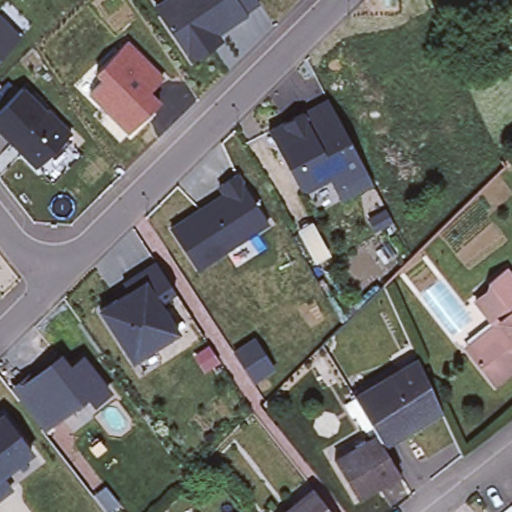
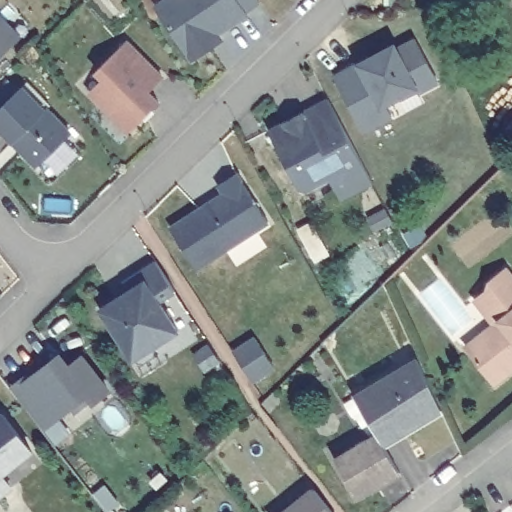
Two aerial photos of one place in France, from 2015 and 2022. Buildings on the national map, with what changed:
unchanged [(209,50),(190,63),(159,18),(153,9),(168,0),(254,0),(258,5),(243,15),(244,17),(216,37),(219,43),(209,50)]
unchanged [(394,9),(383,9),(383,5),(383,0),(395,0),(394,9)]
unchanged [(0,59),(0,15),(22,37),(0,59)]
unchanged [(86,94),(100,81),(91,73),(127,37),(166,77),(153,92),(161,102),(126,135),(86,94)]
new [(418,94),(416,91),(387,107),(394,119),(365,134),(334,74),(356,61),(396,42),(399,48),(416,38),(439,83),(418,94)]
unchanged [(44,112),(69,137),(58,149),(35,170),(0,135),(0,110),(20,91),(43,113),(44,112)]
unchanged [(371,181),(338,198),(334,189),(326,176),(304,188),(297,185),(267,128),(284,119),(293,114),(327,96),(366,172),(369,176),(371,181)]
unchanged [(223,196),(218,188),(235,176),(267,226),(254,234),(196,272),(169,231),(223,196)]
unchanged [(140,373),(131,357),(97,306),(114,295),(125,287),(120,279),(153,258),(171,284),(173,288),(156,298),(176,328),(149,346),(158,361),(140,373)]
unchanged [(491,326),(484,317),(472,302),(487,289),(484,285),(488,282),(503,270),(512,282),(512,370),(493,386),(466,353),(463,349),(491,326)]
new [(255,339),(274,368),(251,383),(231,353),(255,339)]
new [(205,341),(219,361),(204,373),(189,351),(205,341)]
unchanged [(9,387),(58,350),(69,364),(84,353),(114,390),(91,407),(84,398),(43,432),(9,387)]
unchanged [(373,433),(351,396),(405,366),(432,413),(393,435),(389,428),(374,436),(373,433)]
unchanged [(3,477),(13,488),(0,498),(0,412),(34,453),(3,477)]
unchanged [(374,436),(394,472),(356,493),(335,454),(373,433),(374,436)]
unchanged [(327,512),(287,512),(311,493),(327,512)]

